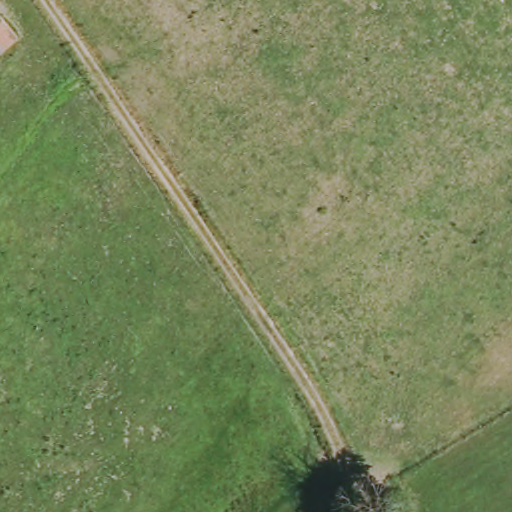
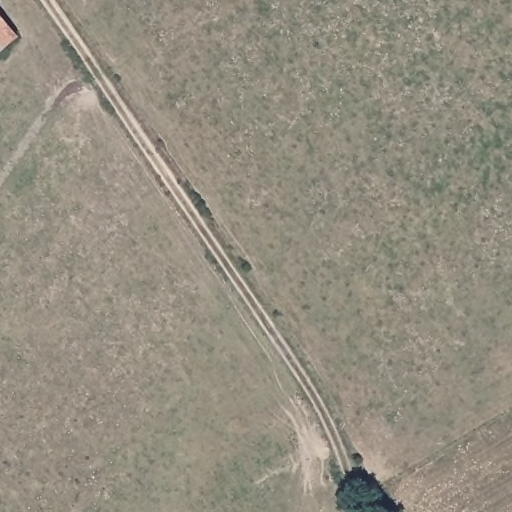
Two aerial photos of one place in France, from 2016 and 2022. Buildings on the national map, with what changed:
unchanged [(0,63),(0,10),(26,40),(0,63)]

